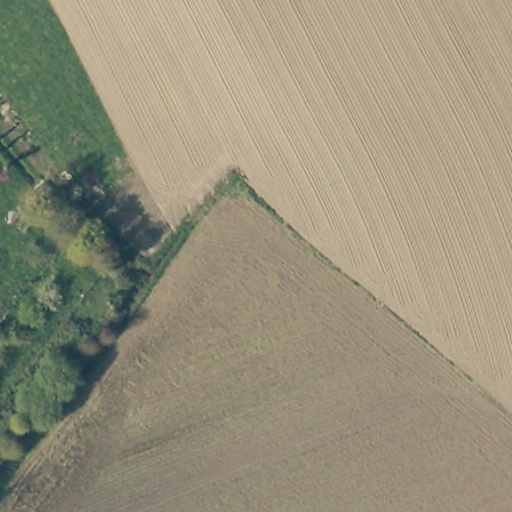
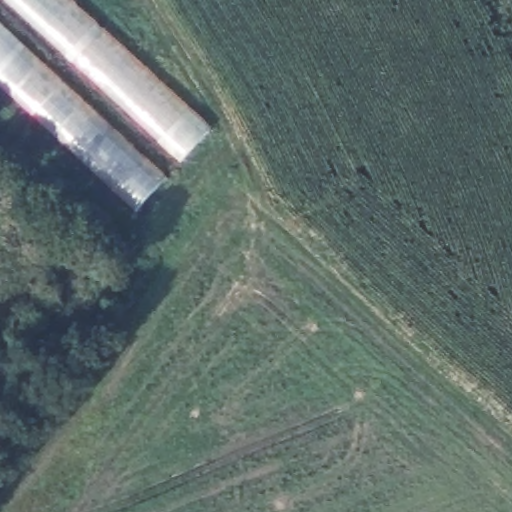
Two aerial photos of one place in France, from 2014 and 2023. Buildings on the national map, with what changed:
new [(183,160),(7,0),(70,0),(210,129),(183,160)]
new [(138,210),(0,83),(0,26),(165,178),(138,210)]

